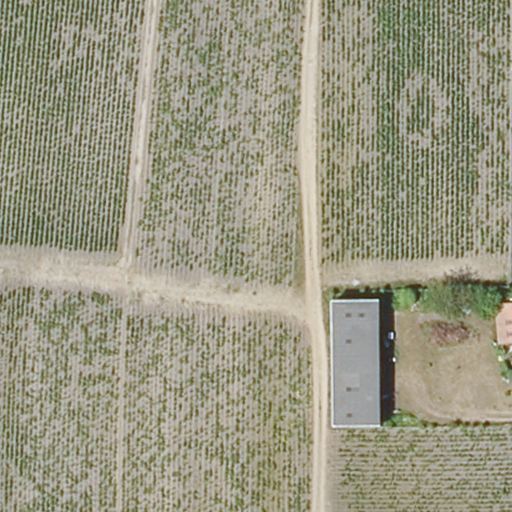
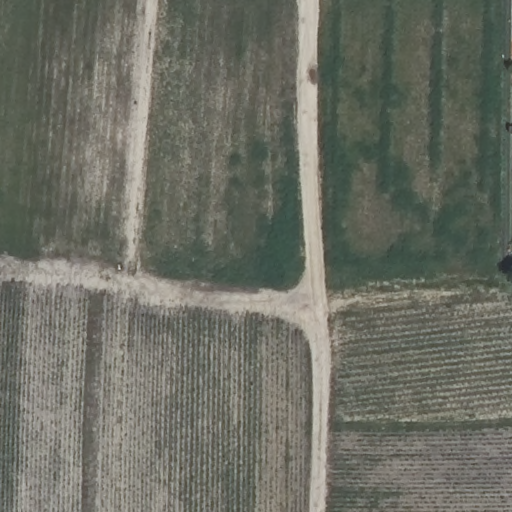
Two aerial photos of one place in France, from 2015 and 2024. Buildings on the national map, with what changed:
demolished [(376,426),(332,426),(332,304),(374,303),(376,426)]
demolished [(500,347),(495,308),(512,305),(512,345),(500,347)]

